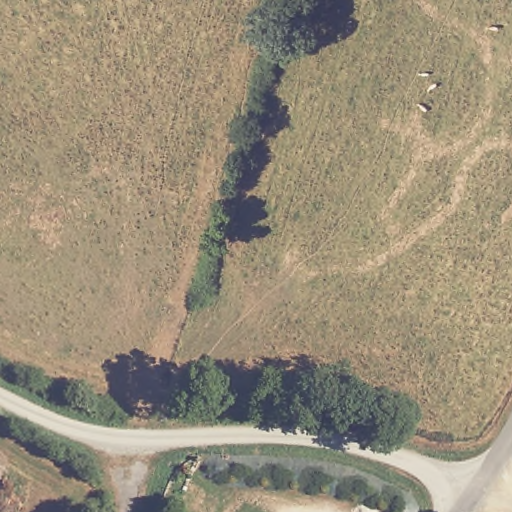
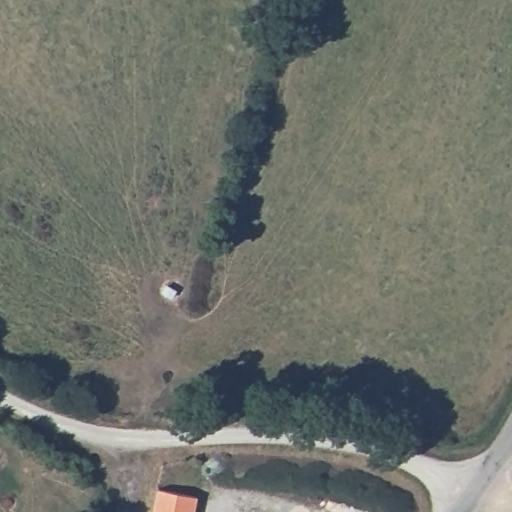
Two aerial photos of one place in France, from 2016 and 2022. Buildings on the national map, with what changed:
new [(157,488),(198,496),(195,512),(153,512),(157,488)]

